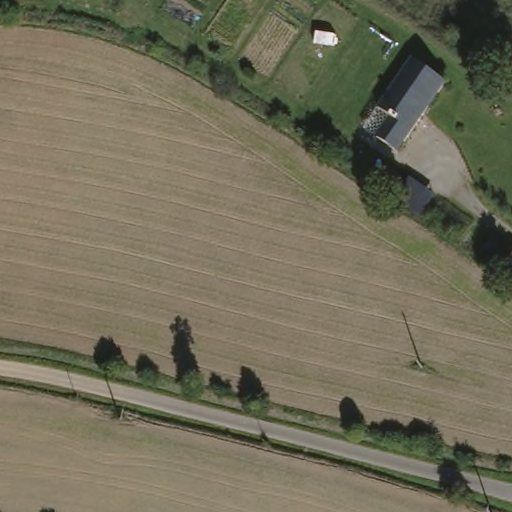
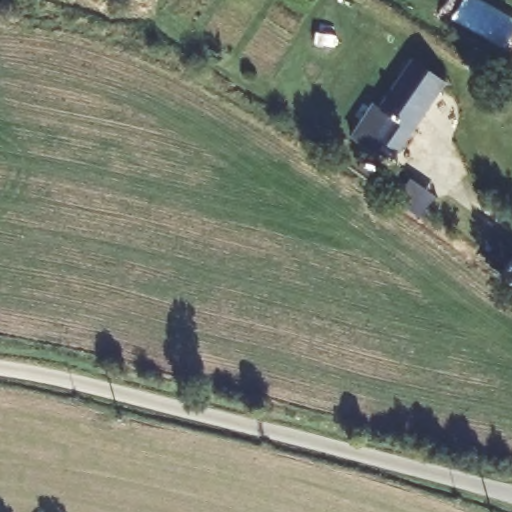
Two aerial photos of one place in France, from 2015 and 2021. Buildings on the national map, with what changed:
unchanged [(405,146),(383,134),(392,116),(382,108),(413,54),(453,79),(405,146)]
unchanged [(512,265),(512,284),(503,278),(512,265)]

